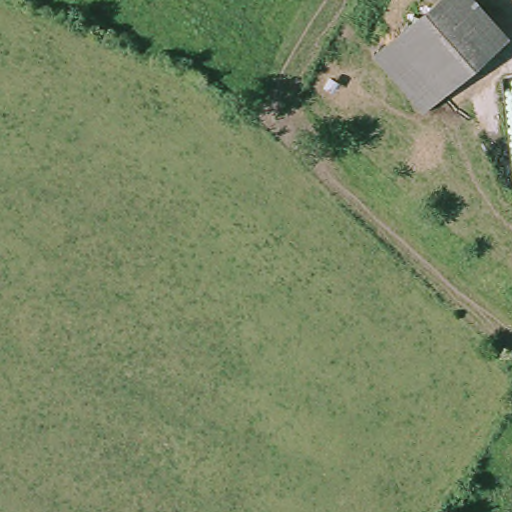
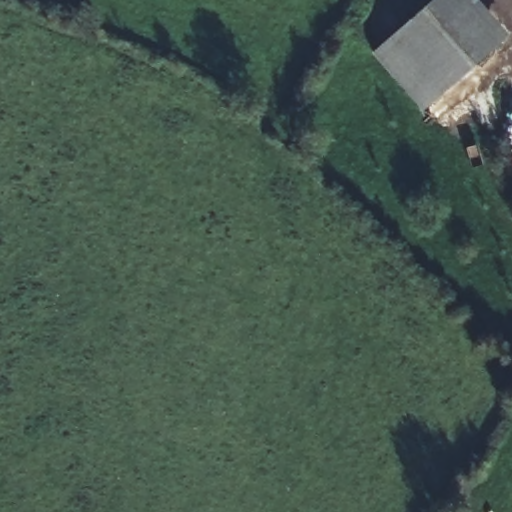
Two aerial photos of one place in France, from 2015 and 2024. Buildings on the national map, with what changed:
unchanged [(429,0),(469,0),(498,40),(422,95),(380,34),(429,0)]

